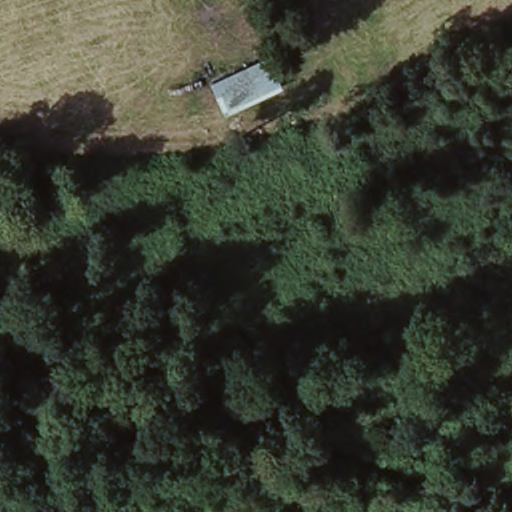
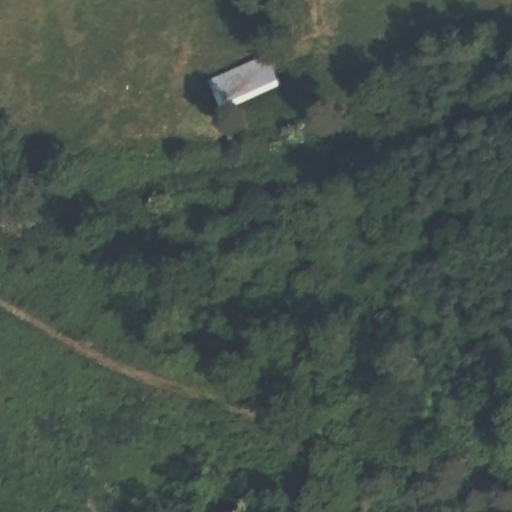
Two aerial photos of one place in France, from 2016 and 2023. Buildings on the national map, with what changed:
unchanged [(267,57),(282,91),(222,117),(208,84),(267,57)]

